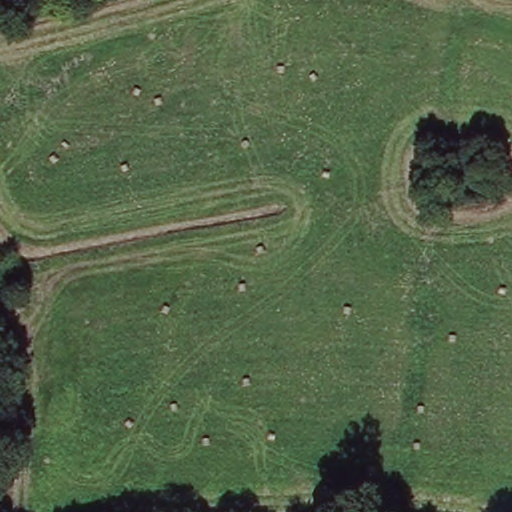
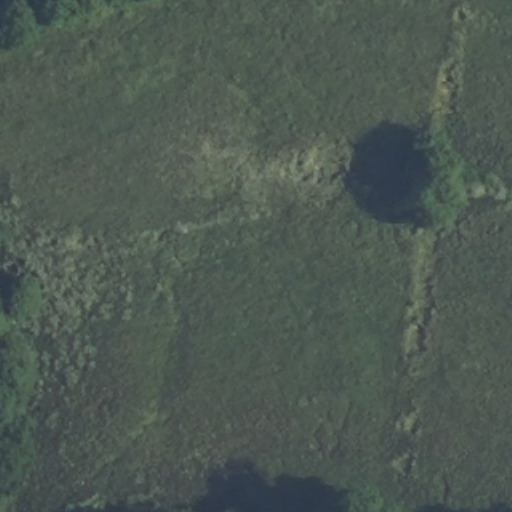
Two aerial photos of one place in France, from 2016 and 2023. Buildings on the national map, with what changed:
[]

